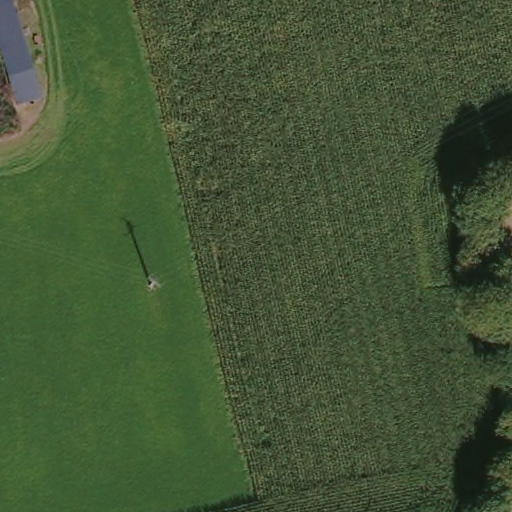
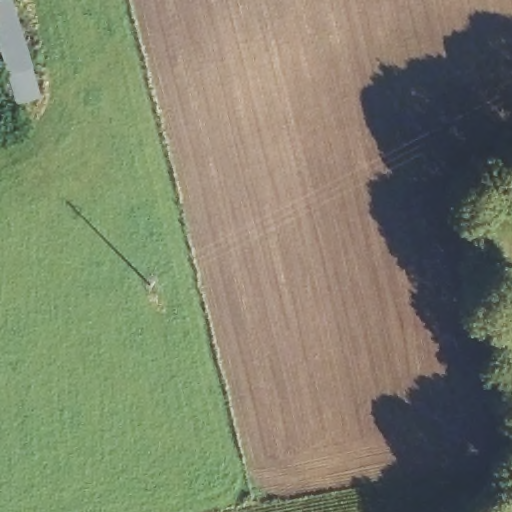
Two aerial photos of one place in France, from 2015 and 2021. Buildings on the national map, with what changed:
unchanged [(42,100),(14,111),(0,75),(0,5),(8,2),(42,100)]

